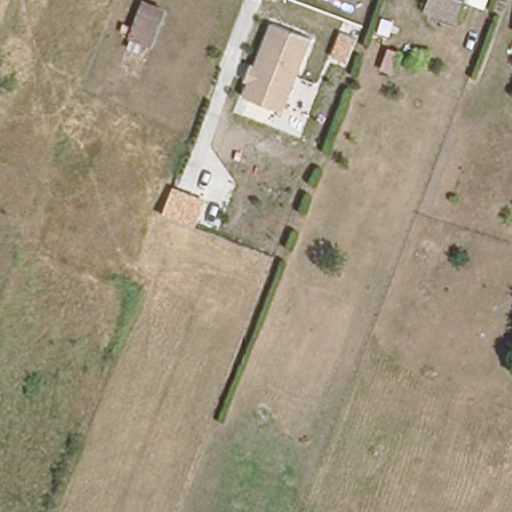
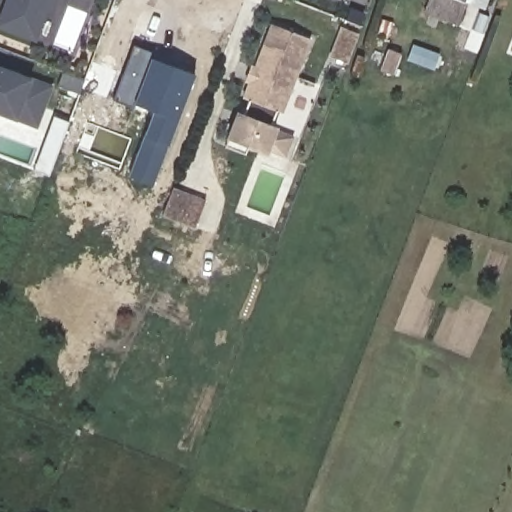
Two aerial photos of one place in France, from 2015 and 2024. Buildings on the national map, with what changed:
new [(35,41),(0,28),(0,8),(3,0),(52,0),(35,41)]
unchanged [(425,13),(431,0),(490,0),(487,10),(467,2),(458,26),(425,13)]
unchanged [(168,11),(153,49),(132,41),(131,40),(122,37),(125,29),(134,32),(144,2),(168,11)]
unchanged [(272,23),(313,36),(283,112),(275,109),(249,100),(244,98),(272,23)]
new [(167,144),(153,184),(129,175),(143,135),(152,110),(132,102),(131,105),(112,98),(132,44),(152,51),(150,56),(194,73),(167,144)]
unchanged [(432,54),(426,68),(413,62),(419,48),(432,54)]
new [(15,121),(0,116),(0,65),(33,77),(53,84),(36,128),(15,121)]
new [(237,110),(244,113),(249,100),(275,109),(270,124),(277,126),(293,134),(283,160),(269,154),(226,136),(237,110)]
unchanged [(195,227),(164,216),(174,187),(206,199),(195,227)]

